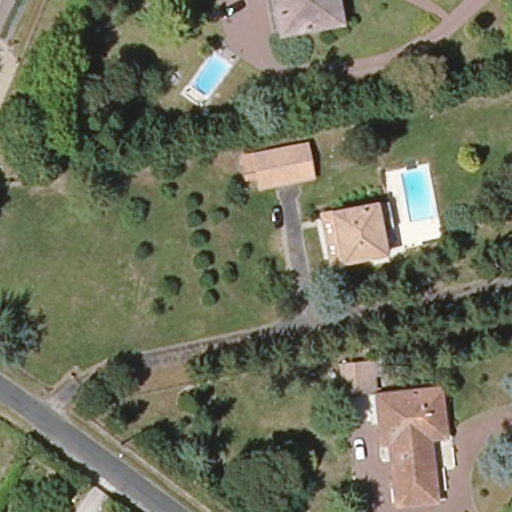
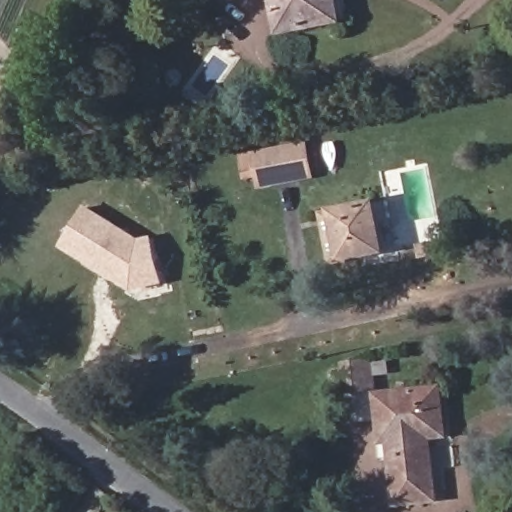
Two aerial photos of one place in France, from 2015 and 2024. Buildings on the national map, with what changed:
unchanged [(281,34),(275,0),(338,0),(342,22),(334,23),(281,34)]
unchanged [(303,145),(308,176),(258,186),(252,156),(303,145)]
new [(132,292),(59,247),(86,206),(140,240),(151,236),(165,285),(132,292)]
unchanged [(392,206),(395,222),(381,226),(386,256),(341,265),(341,261),(335,216),(389,206),(392,206)]
unchanged [(343,364),(370,362),(377,362),(378,391),(370,392),(345,393),(343,364)]
unchanged [(431,441),(438,504),(397,507),(391,445),(382,445),(380,397),(445,391),(450,438),(431,441)]

